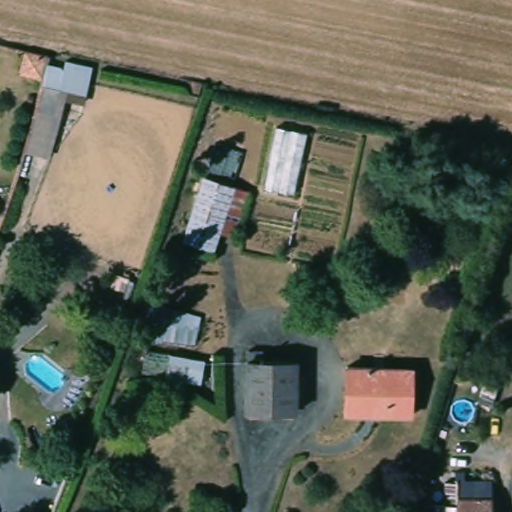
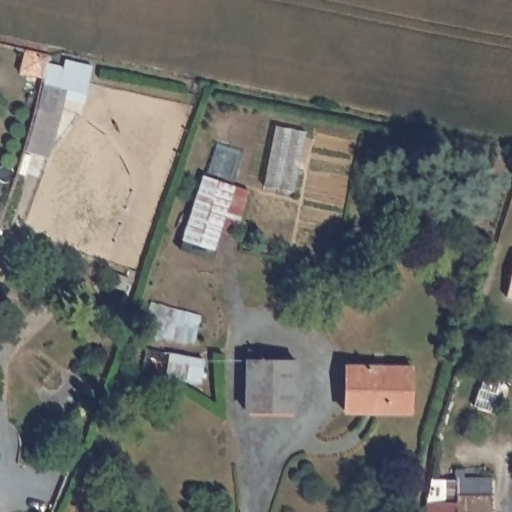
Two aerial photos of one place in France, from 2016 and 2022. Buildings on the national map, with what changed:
unchanged [(30,126),(34,126),(44,82),(17,74),(27,48),(51,55),(50,64),(63,65),(68,56),(97,65),(88,95),(65,93),(55,134),(49,133),(44,153),(25,147),(30,126)]
unchanged [(279,122),(309,131),(294,193),(265,187),(279,122)]
unchanged [(184,239),(206,171),(210,173),(222,137),(249,146),(237,182),(253,188),(238,236),(225,232),(220,250),(184,239)]
unchanged [(145,370),(148,345),(211,356),(207,380),(145,370)]
unchanged [(259,348),(260,357),(247,357),(247,348),(259,348)]
unchanged [(296,360),(295,412),(246,412),(246,360),(296,360)]
unchanged [(410,365),(409,413),(344,413),(343,363),(410,365)]
unchanged [(500,373),(493,395),(479,391),(486,369),(500,373)]
unchanged [(456,478),(492,478),(492,512),(429,512),(429,502),(456,502),(456,478)]

